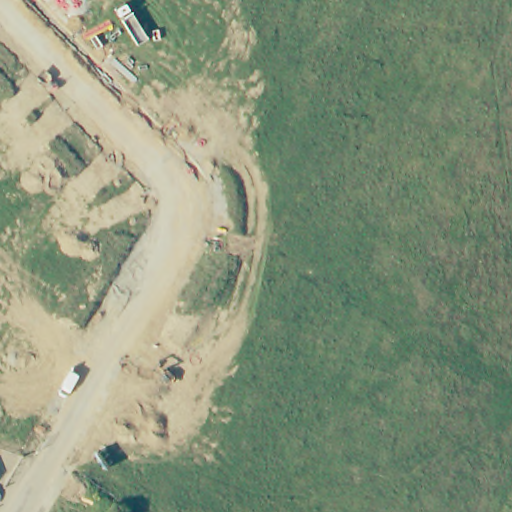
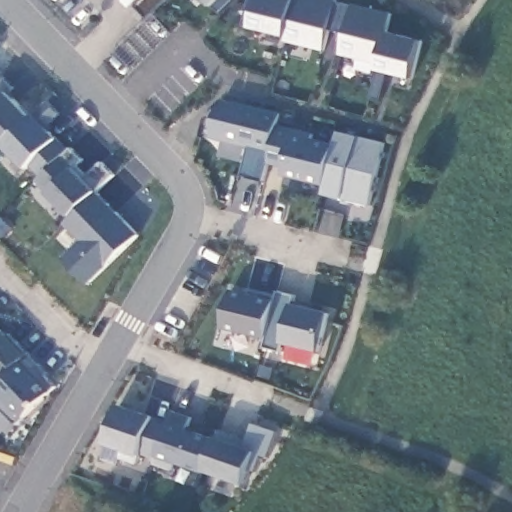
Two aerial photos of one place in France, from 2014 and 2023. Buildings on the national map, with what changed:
new [(214,7),(207,0),(220,0),(214,7)]
new [(393,12),(388,32),(423,40),(413,79),(386,71),(381,100),(371,97),(378,62),(340,55),(346,31),(331,28),(326,50),(285,40),(285,35),(251,28),(252,25),(242,23),(248,0),(342,0),(393,12)]
new [(2,145),(0,142),(0,78),(2,75),(14,85),(9,91),(33,115),(2,145)]
new [(282,112),(278,124),(315,131),(313,137),(336,142),(337,130),(386,142),(371,205),(323,195),(326,184),(283,175),(286,165),(268,163),(264,180),(242,175),(249,146),(210,137),(217,108),(229,97),(282,112)]
new [(85,174),(102,160),(112,173),(97,189),(139,234),(88,285),(62,256),(81,240),(63,223),(71,215),(48,192),(36,179),(26,168),(2,145),(33,115),(85,174)]
new [(232,288),(249,292),(249,288),(277,296),(278,291),(295,294),(293,303),(330,311),(321,351),(316,350),(316,355),(287,347),(288,343),(283,342),(281,350),(265,346),(267,338),(222,328),(232,288)]
new [(39,363),(46,371),(43,373),(54,385),(15,422),(0,407),(0,377),(27,351),(39,363)]
new [(156,415),(169,420),(172,409),(193,415),(190,427),(217,437),(220,428),(248,439),(254,422),(279,431),(271,456),(258,452),(247,485),(205,470),(204,473),(176,462),(173,470),(154,464),(157,457),(144,453),(139,464),(122,458),(124,450),(107,444),(121,403),(156,415)]

